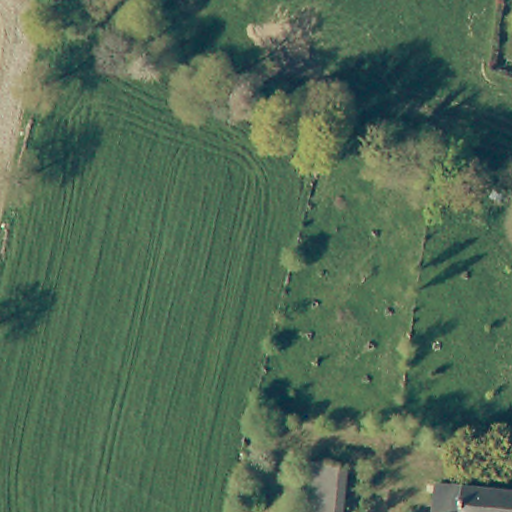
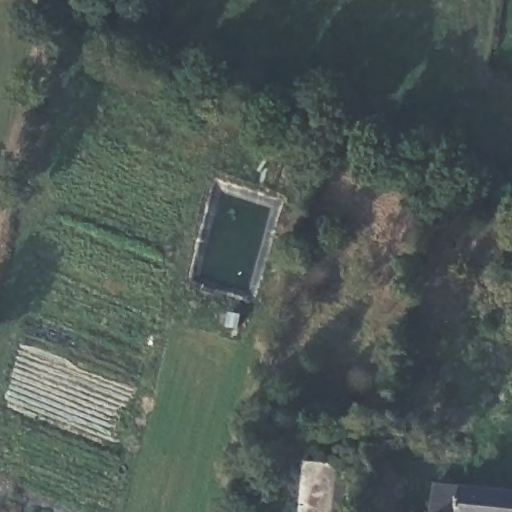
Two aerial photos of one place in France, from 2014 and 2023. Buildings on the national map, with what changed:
unchanged [(350,512),(309,512),(313,467),(354,471),(350,512)]
unchanged [(449,480),(512,488),(512,512),(440,512),(444,480),(449,480)]

